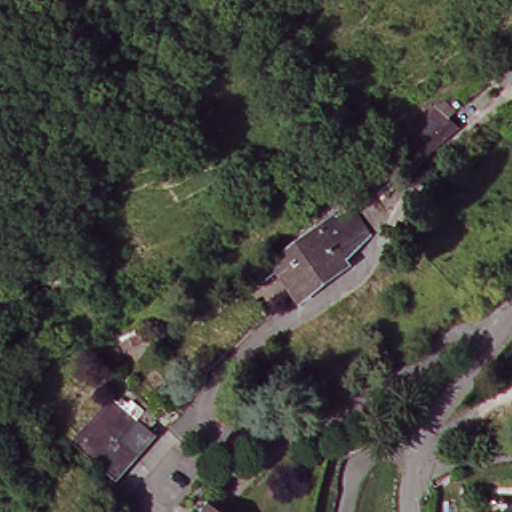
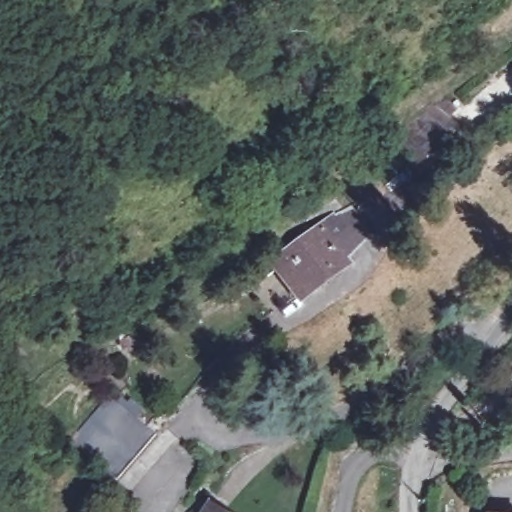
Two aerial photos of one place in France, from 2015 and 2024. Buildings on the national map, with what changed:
unchanged [(437,107),(463,127),(415,170),(392,140),(437,107)]
unchanged [(293,305),(268,271),(338,219),(360,247),(335,275),(293,305)]
unchanged [(52,292),(50,284),(33,286),(33,276),(67,273),(68,282),(65,282),(65,291),(52,292)]
unchanged [(140,334),(144,343),(125,352),(120,343),(140,334)]
unchanged [(112,397),(125,409),(133,400),(144,409),(147,411),(139,420),(157,436),(138,458),(92,420),(112,397)]
unchanged [(512,418),(511,417),(512,416),(512,418)]
unchanged [(138,458),(118,480),(73,441),(83,430),(92,420),(138,458)]
unchanged [(219,512),(210,512),(213,508),(219,512)]

